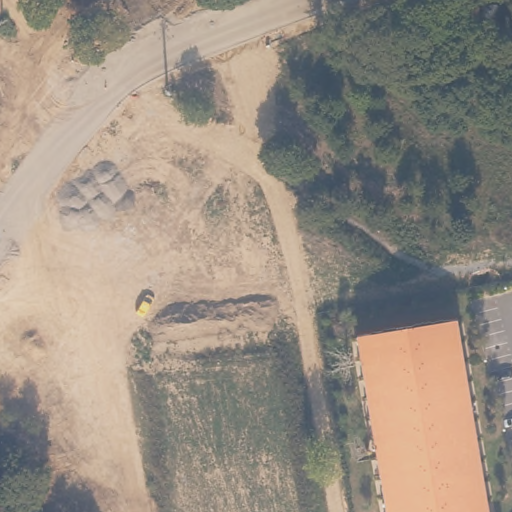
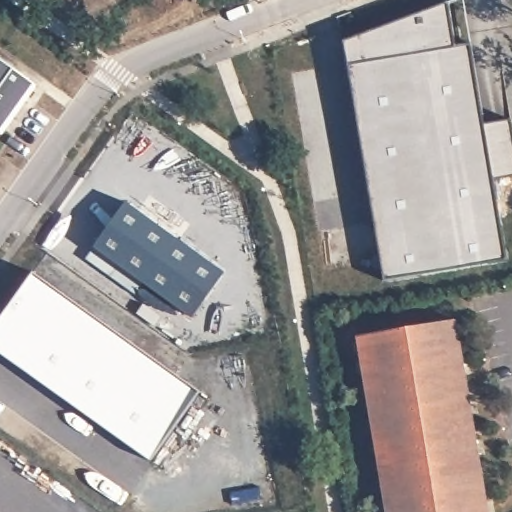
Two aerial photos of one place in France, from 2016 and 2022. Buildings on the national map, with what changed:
new [(384,279),(345,41),(450,3),(456,0),(465,0),(472,44),(485,123),(511,120),(512,126),(512,176),(494,180),(507,258),(384,279)]
unchanged [(0,136),(0,59),(36,85),(0,136)]
new [(193,318),(95,246),(126,201),(225,271),(193,318)]
new [(0,321),(35,271),(199,390),(149,460),(0,354),(0,321)]
unchanged [(492,512),(382,512),(357,336),(457,318),(492,512)]

